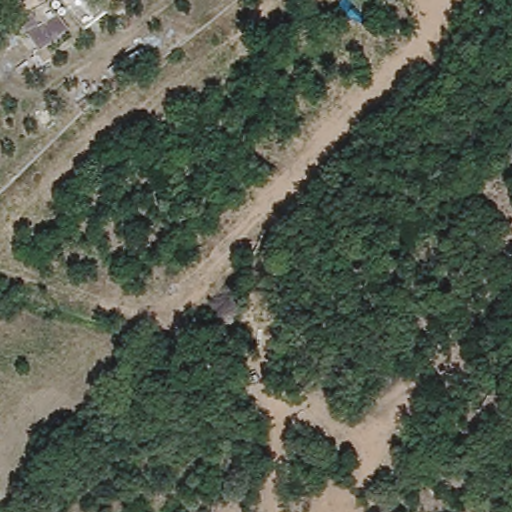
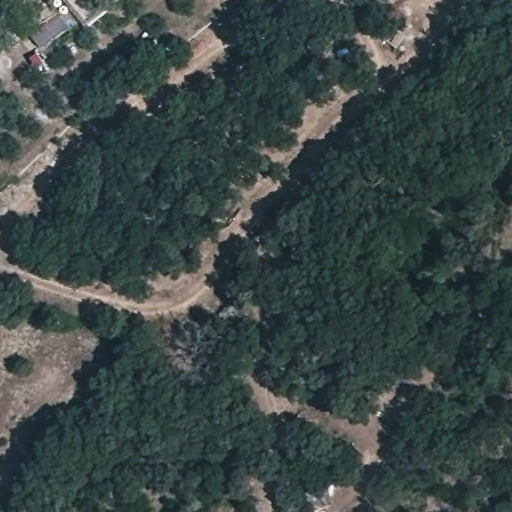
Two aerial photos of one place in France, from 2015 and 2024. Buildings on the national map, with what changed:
unchanged [(65,27),(47,38),(40,26),(23,35),(16,21),(50,2),(65,27)]

